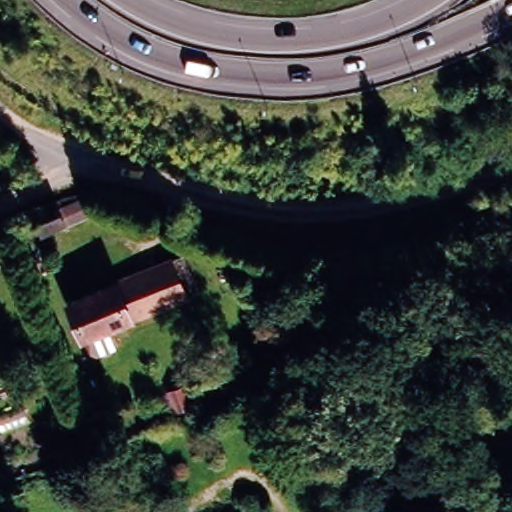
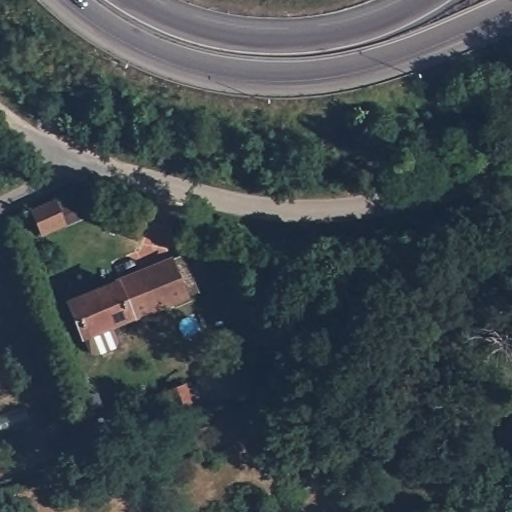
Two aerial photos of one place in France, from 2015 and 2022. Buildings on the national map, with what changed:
unchanged [(63,220),(40,230),(30,206),(54,196),(63,220)]
unchanged [(68,302),(178,256),(194,293),(83,339),(68,302)]
unchanged [(166,395),(183,387),(191,409),(174,416),(166,395)]
unchanged [(90,433),(78,437),(73,423),(125,404),(135,430),(95,445),(90,433)]
unchanged [(297,487),(379,467),(384,490),(303,510),(297,487)]
unchanged [(481,472),(486,496),(417,512),(385,512),(382,497),(481,472)]

